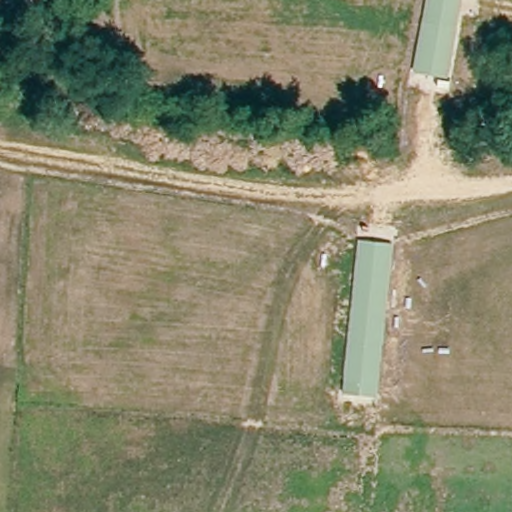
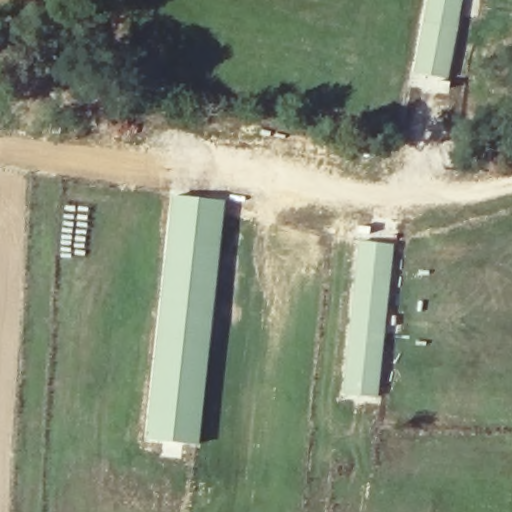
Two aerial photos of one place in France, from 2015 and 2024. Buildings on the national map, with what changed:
unchanged [(410,74),(423,0),(461,0),(446,78),(410,74)]
new [(225,201),(199,446),(146,441),(172,195),(225,201)]
unchanged [(394,244),(380,402),(341,398),(354,242),(394,244)]

